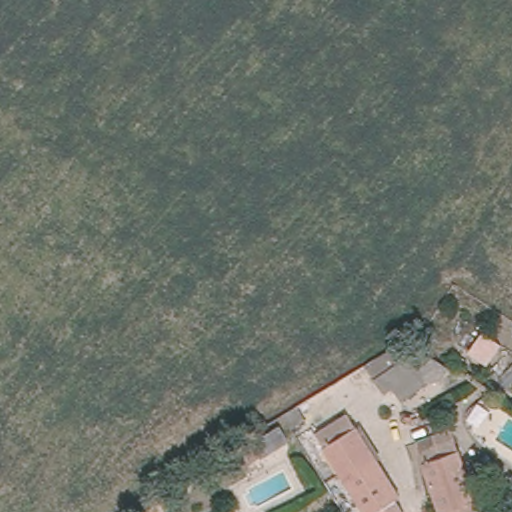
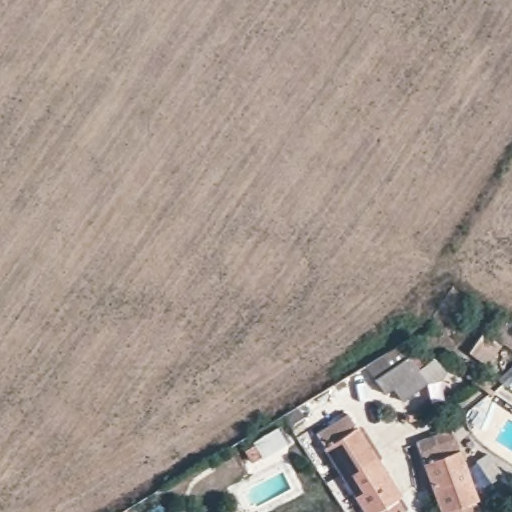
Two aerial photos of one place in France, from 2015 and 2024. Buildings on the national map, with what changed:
unchanged [(427,382),(402,401),(391,389),(384,393),(375,379),(407,357),(427,382)]
unchanged [(372,512),(369,507),(363,511),(312,430),(344,410),(353,424),(357,421),(377,452),(373,456),(395,491),(390,494),(395,501),(378,512),(372,512)]
unchanged [(287,412),(296,426),(281,435),(272,421),(287,412)]
unchanged [(280,446),(253,462),(244,448),(270,432),(280,446)]
unchanged [(477,496),(475,497),(477,504),(454,512),(449,512),(447,507),(442,508),(420,447),(455,435),(477,496)]

